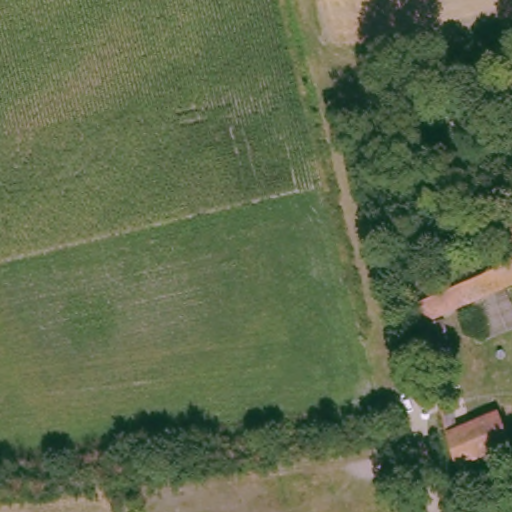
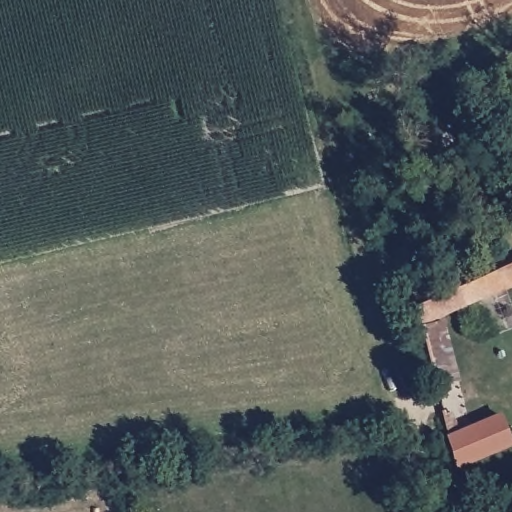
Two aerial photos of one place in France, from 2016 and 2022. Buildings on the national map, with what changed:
unchanged [(512,265),(512,291),(470,310),(461,287),(512,265)]
unchanged [(470,310),(445,320),(450,340),(430,346),(424,327),(415,307),(461,287),(470,310)]
unchanged [(447,440),(498,417),(510,448),(455,472),(447,440)]

